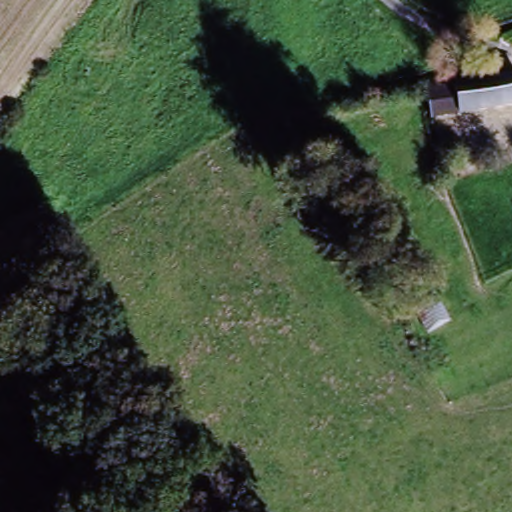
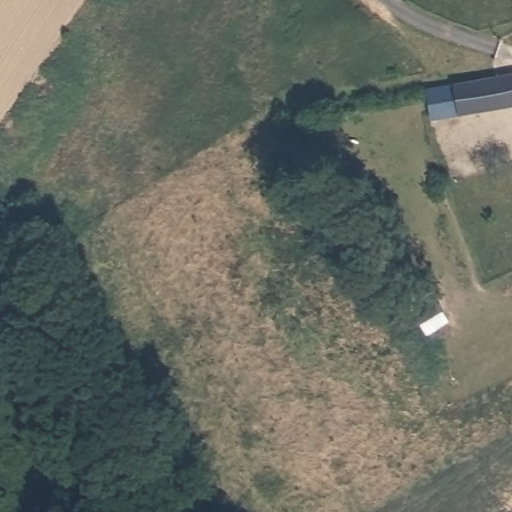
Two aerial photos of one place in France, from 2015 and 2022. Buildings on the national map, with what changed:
unchanged [(440,83),(512,72),(512,101),(429,114),(425,87),(440,83)]

